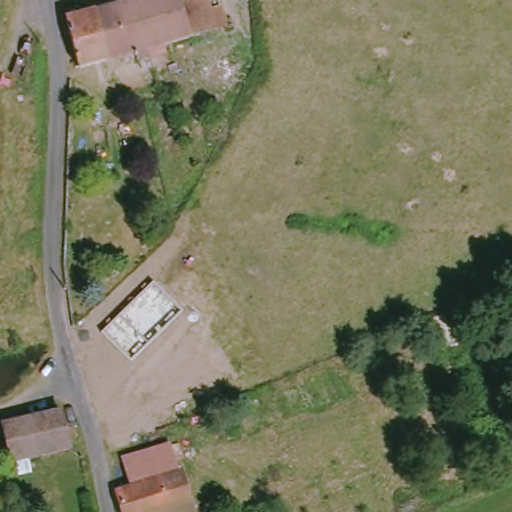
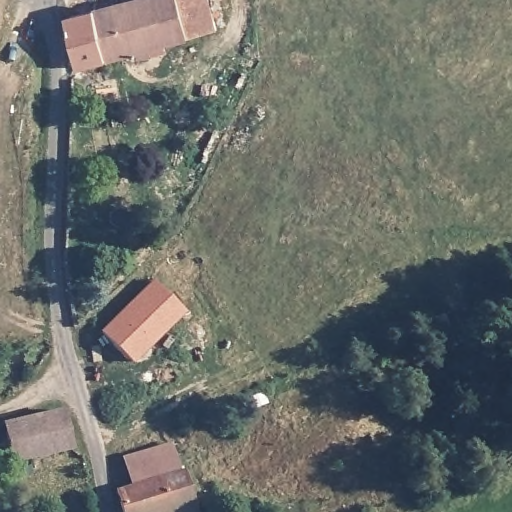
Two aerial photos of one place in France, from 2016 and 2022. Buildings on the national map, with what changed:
unchanged [(142,0),(170,0),(177,45),(125,56),(75,67),(67,13),(142,0)]
unchanged [(218,36),(207,39),(177,45),(170,0),(210,0),(218,36)]
new [(102,330),(152,280),(184,311),(134,362),(102,330)]
unchanged [(15,463),(5,427),(61,413),(70,449),(15,463)]
unchanged [(128,483),(120,456),(167,441),(176,470),(182,467),(197,512),(120,512),(112,489),(128,483)]

